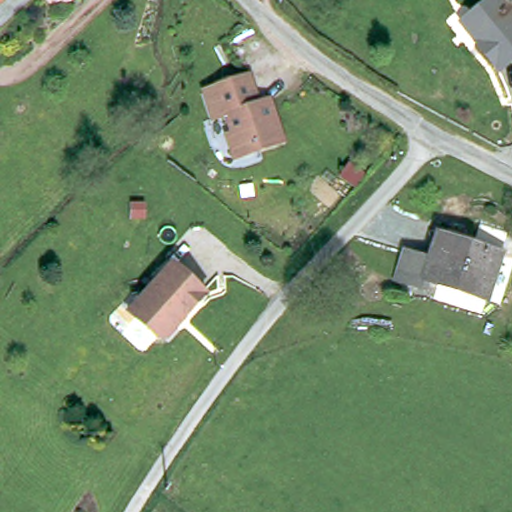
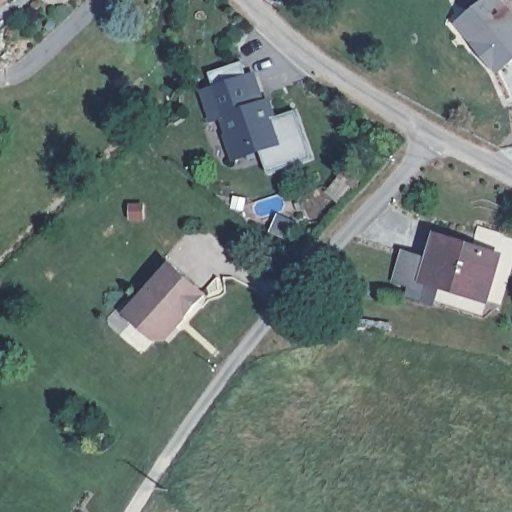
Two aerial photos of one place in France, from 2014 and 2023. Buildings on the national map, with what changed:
unchanged [(0,0),(24,0),(0,22),(0,0)]
unchanged [(493,0),(512,0),(512,63),(509,60),(498,69),(477,44),(460,25),(470,16),(493,0)]
unchanged [(258,102),(270,98),(282,134),(262,142),(260,138),(239,146),(233,142),(230,134),(233,127),(227,109),(215,114),(206,89),(218,85),(248,74),(258,102)]
unchanged [(509,258),(497,303),(435,281),(432,289),(407,282),(417,256),(439,264),(446,237),(509,258)]
unchanged [(141,301),(172,266),(200,292),(205,296),(178,326),(165,342),(157,342),(134,323),(127,316),(141,301)]

